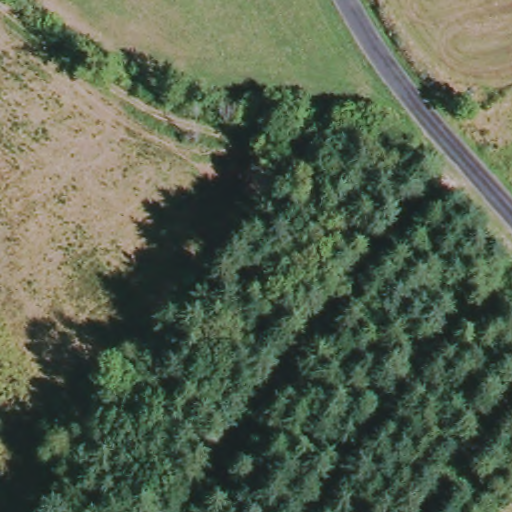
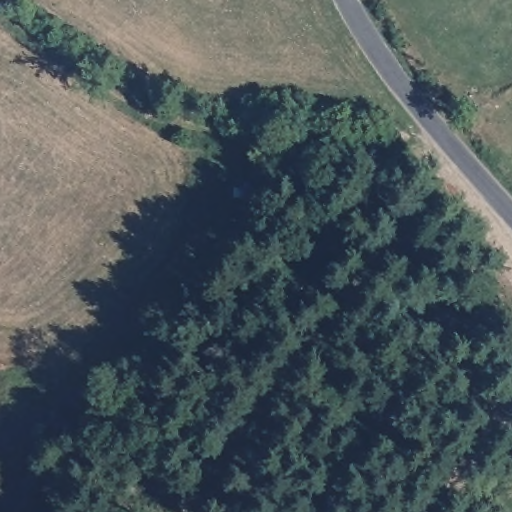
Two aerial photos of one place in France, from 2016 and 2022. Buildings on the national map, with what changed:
unchanged [(429,169),(450,169),(480,203),(477,221),(431,220),(430,205),(429,169)]

